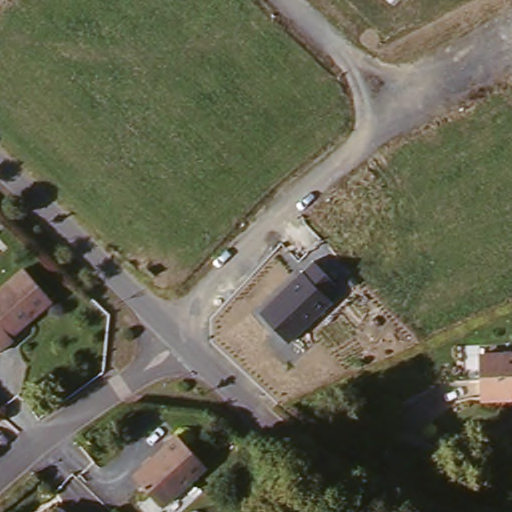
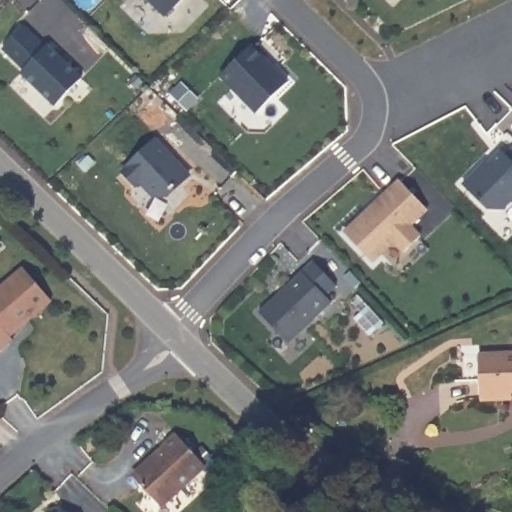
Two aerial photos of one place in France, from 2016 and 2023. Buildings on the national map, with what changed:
new [(164,10),(153,0),(173,0),(164,10)]
new [(43,41),(45,39),(80,73),(53,98),(20,65),(22,64),(1,43),(22,21),(43,41)]
new [(249,39),(285,76),(255,107),(218,70),(249,39)]
new [(153,134),(186,169),(165,188),(159,181),(151,188),(139,174),(135,178),(122,165),(153,134)]
new [(477,166),(499,145),(503,150),(512,141),(512,191),(500,203),(485,204),(460,179),(475,163),(477,166)]
new [(384,185),(385,187),(397,177),(423,205),(406,220),(416,231),(397,250),(386,239),(369,256),(341,226),(384,185)]
unchanged [(313,260),(338,283),(328,292),(335,301),(288,343),(258,311),(313,260)]
unchanged [(22,263),(51,295),(10,331),(12,334),(0,345),(0,282),(22,263)]
unchanged [(511,398),(479,398),(479,354),(512,353),(512,393),(511,393),(511,398)]
unchanged [(134,460),(173,442),(172,440),(187,432),(205,471),(151,497),(134,460)]
unchanged [(68,512),(60,512),(64,508),(68,512)]

